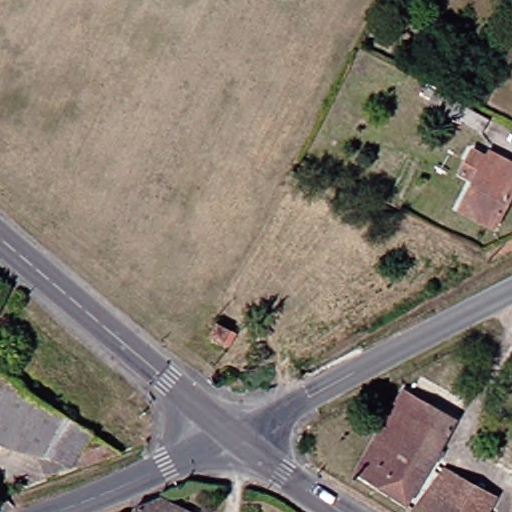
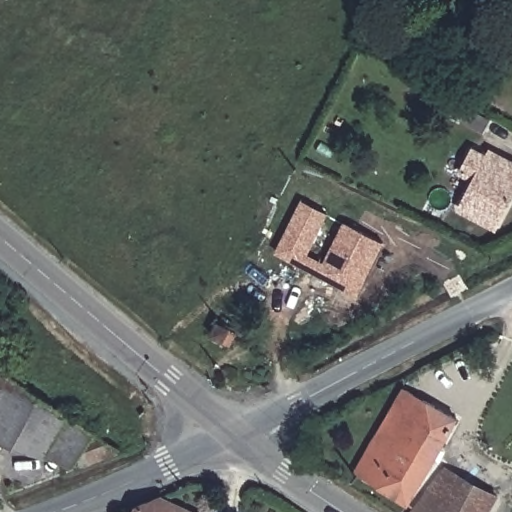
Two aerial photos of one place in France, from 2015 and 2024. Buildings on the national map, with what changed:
unchanged [(446,99),(441,111),(430,105),(435,94),(446,99)]
unchanged [(456,119),(444,112),(449,101),(462,107),(456,119)]
unchanged [(483,133),(459,121),(466,107),(490,120),(483,133)]
unchanged [(479,152),(512,169),(512,177),(486,227),(450,209),(465,180),(451,173),(463,150),(477,157),(479,152)]
new [(302,199),(328,212),(309,253),(324,261),(344,222),(385,242),(359,296),(276,252),(302,199)]
unchanged [(1,361),(80,412),(104,430),(129,446),(84,462),(0,433),(0,360),(1,361)]
unchanged [(402,501),(347,471),(392,389),(447,419),(402,501)]
unchanged [(487,495),(479,512),(403,512),(435,467),(487,495)]
unchanged [(197,512),(139,512),(142,506),(166,497),(197,512)]

